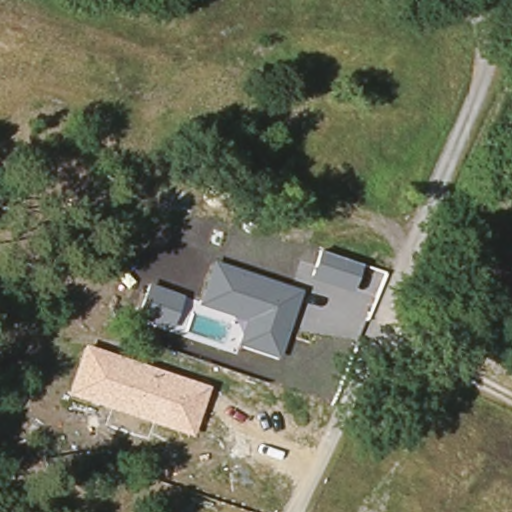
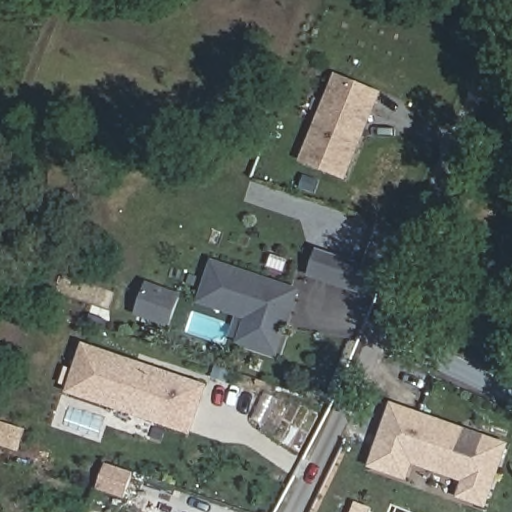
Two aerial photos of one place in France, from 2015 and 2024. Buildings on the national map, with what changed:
new [(347,181),(300,162),(335,74),(381,92),(347,181)]
unchanged [(361,263),(352,292),(309,278),(320,250),(361,263)]
unchanged [(279,357),(237,343),(240,332),(232,316),(196,304),(213,260),(302,289),(279,357)]
unchanged [(182,294),(171,328),(136,317),(148,283),(182,294)]
unchanged [(209,384),(193,436),(66,394),(83,343),(209,384)]
new [(369,467),(392,402),(510,445),(487,509),(458,498),(463,484),(413,467),(408,481),(369,467)]
demolished [(183,512),(186,502),(194,506),(192,512),(183,512)]

